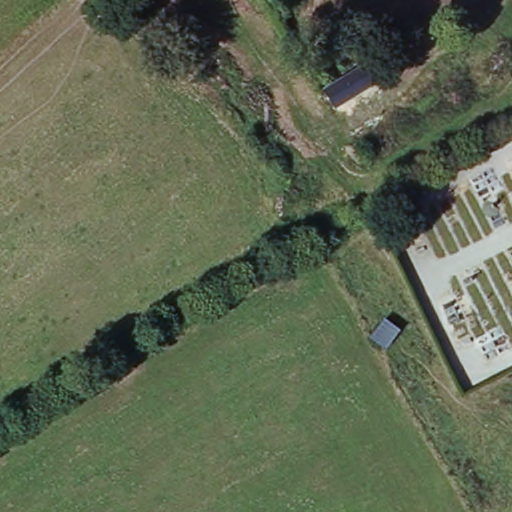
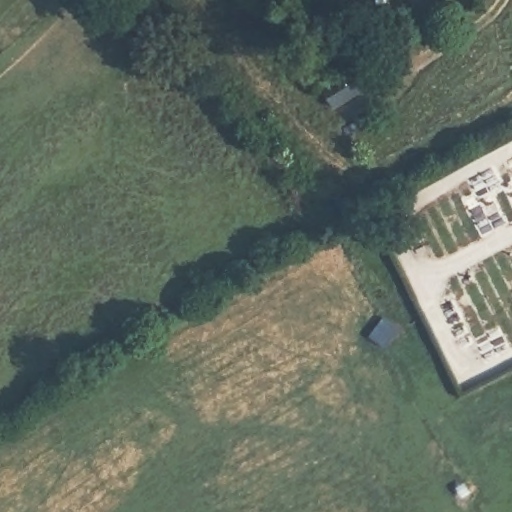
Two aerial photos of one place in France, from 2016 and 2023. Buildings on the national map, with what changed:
unchanged [(373,59),(382,76),(335,104),(327,86),(373,59)]
unchanged [(376,211),(385,206),(389,214),(380,219),(376,211)]
unchanged [(389,313),(401,326),(386,350),(373,336),(389,313)]

